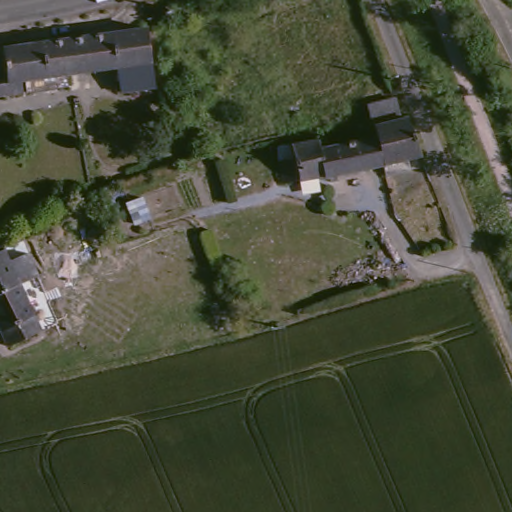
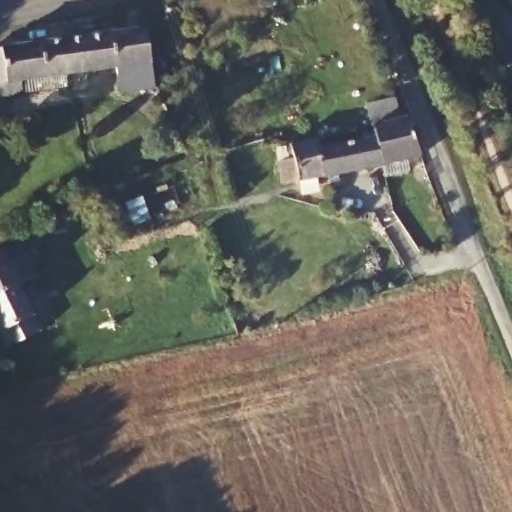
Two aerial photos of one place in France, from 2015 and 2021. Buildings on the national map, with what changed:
unchanged [(164,85),(160,85),(124,91),(119,65),(73,71),(68,36),(78,35),(151,24),(164,85)]
unchanged [(30,78),(24,79),(27,95),(0,99),(0,47),(68,36),(73,71),(65,72),(68,88),(31,95),(30,78)]
unchanged [(389,162),(384,133),(382,122),(377,104),(406,97),(414,117),(419,157),(389,162)]
unchanged [(389,162),(328,174),(323,144),(384,133),(389,162)]
unchanged [(277,160),(298,155),(294,140),(321,135),(323,144),(328,174),(303,178),(281,181),(277,160)]
unchanged [(24,285),(0,297),(0,249),(6,247),(13,261),(31,252),(44,280),(24,285)]
unchanged [(13,348),(0,320),(0,297),(24,285),(45,332),(13,348)]

